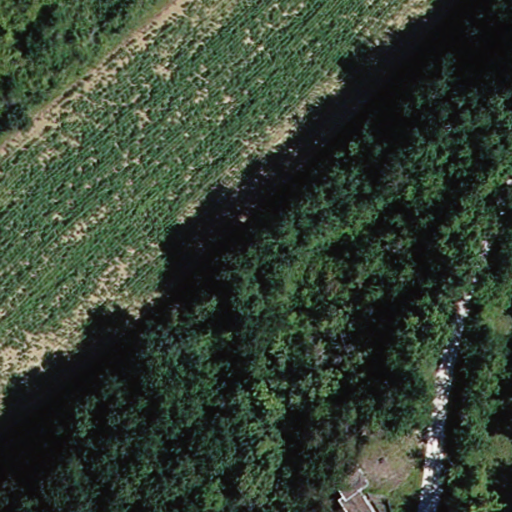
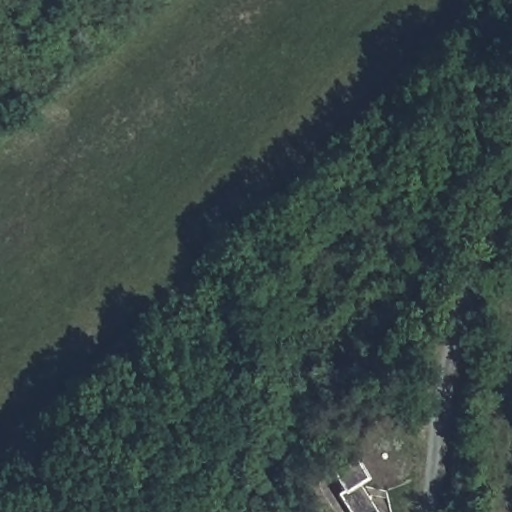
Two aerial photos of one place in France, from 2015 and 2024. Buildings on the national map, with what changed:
unchanged [(360,451),(375,479),(380,485),(369,481),(388,512),(350,512),(337,492),(347,485),(337,465),(360,451)]

